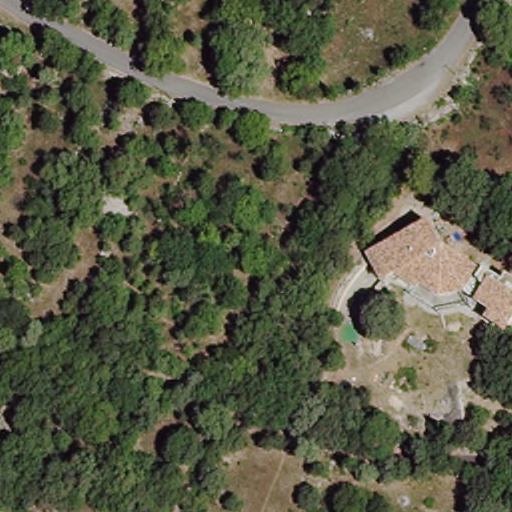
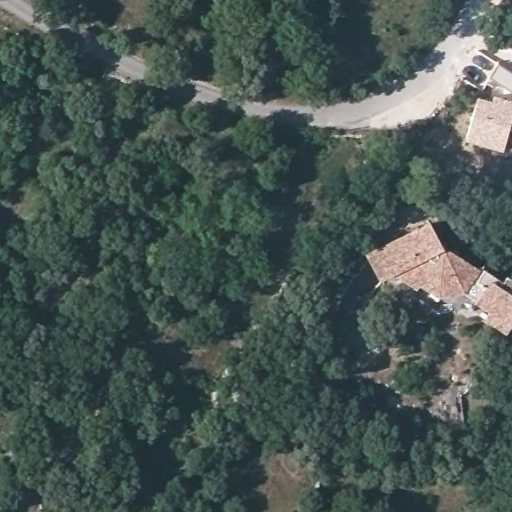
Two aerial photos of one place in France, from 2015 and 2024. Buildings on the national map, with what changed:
new [(512,71),(512,92),(508,90),(489,78),(498,62),(512,71)]
new [(490,99),(493,92),(505,95),(512,98),(512,118),(509,129),(502,152),(465,140),(477,95),(490,99)]
unchanged [(499,315),(484,304),(470,292),(437,298),(419,283),(415,287),(396,272),(391,274),(379,248),(443,220),(454,246),(485,271),(488,268),(511,286),(512,284),(512,329),(508,335),(493,323),(499,315)]

